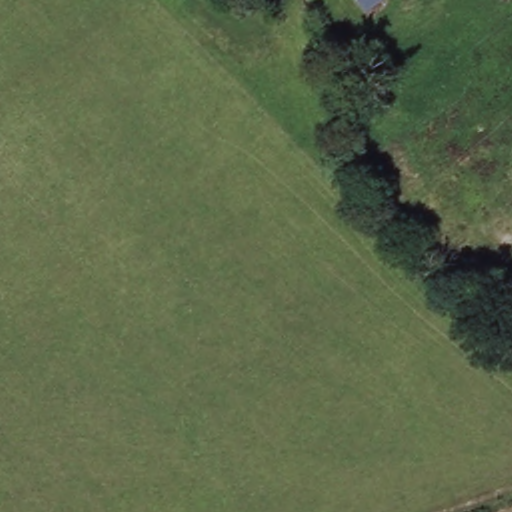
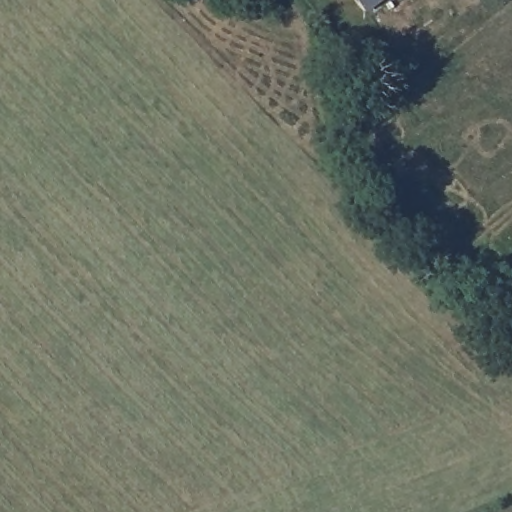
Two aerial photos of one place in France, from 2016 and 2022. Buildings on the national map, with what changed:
unchanged [(376,0),(388,0),(380,6),(376,0)]

